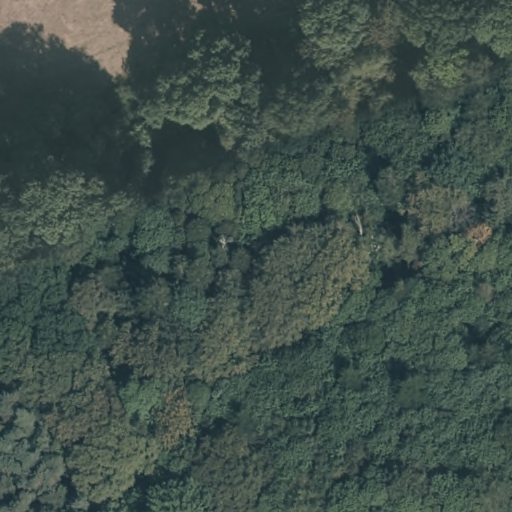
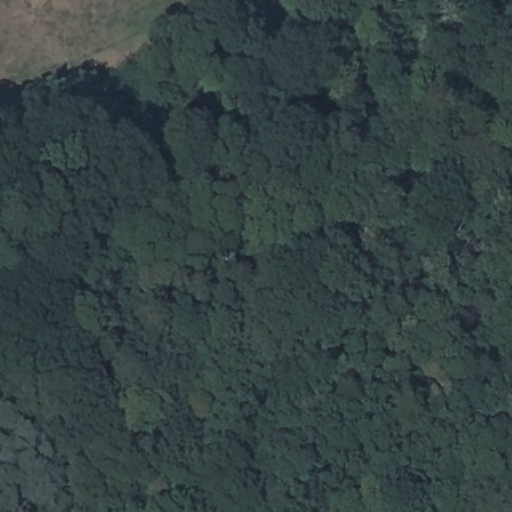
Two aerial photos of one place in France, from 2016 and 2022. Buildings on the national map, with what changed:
unchanged [(503,157),(495,152),(491,145),(492,135),(500,124),(512,122),(512,157),(503,157)]

